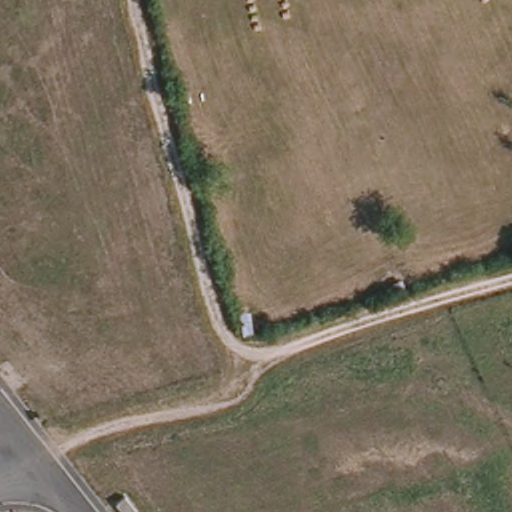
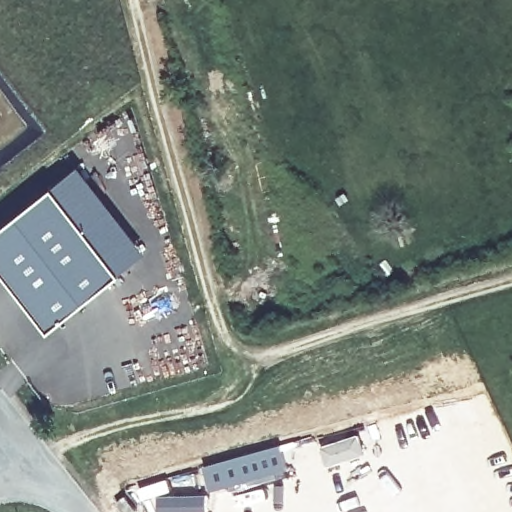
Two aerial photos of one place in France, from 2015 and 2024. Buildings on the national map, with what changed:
new [(77,167),(145,253),(119,273),(52,187),(77,167)]
new [(119,273),(47,329),(0,268),(0,227),(52,187),(119,273)]
new [(206,512),(156,512),(154,495),(206,493),(206,512)]

